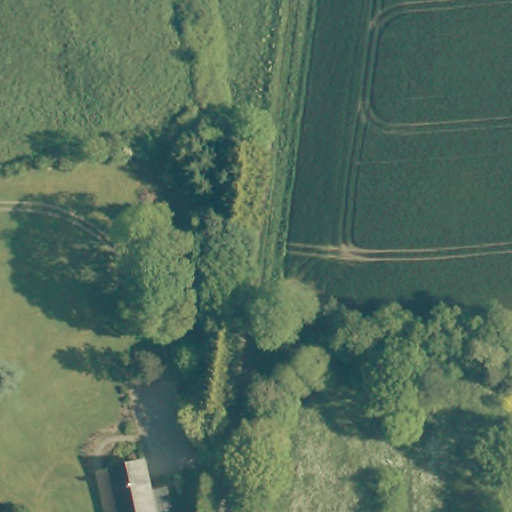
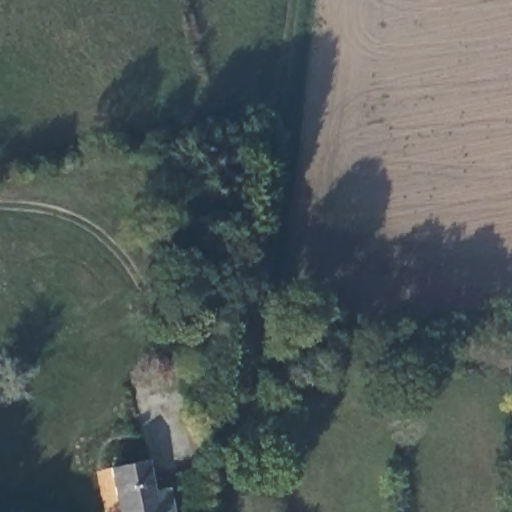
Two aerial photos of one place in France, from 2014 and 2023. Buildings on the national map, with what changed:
unchanged [(107,472),(143,466),(150,497),(164,494),(168,512),(117,512),(107,472)]

